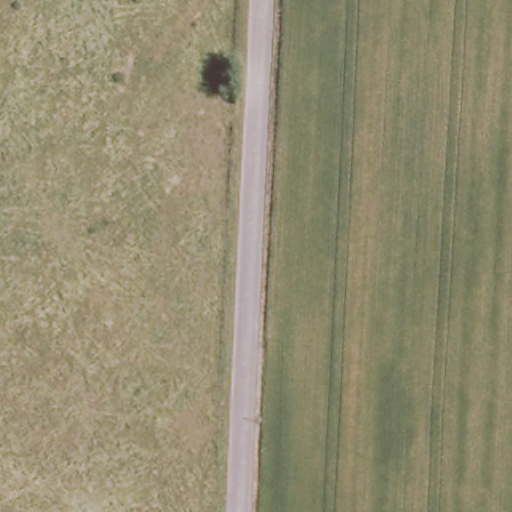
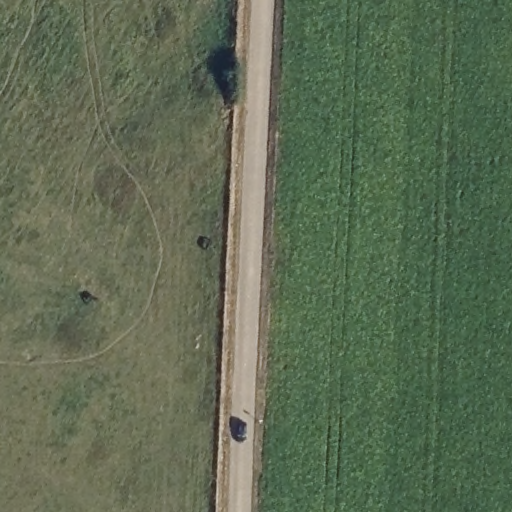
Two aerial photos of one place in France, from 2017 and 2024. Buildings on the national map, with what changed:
[]

